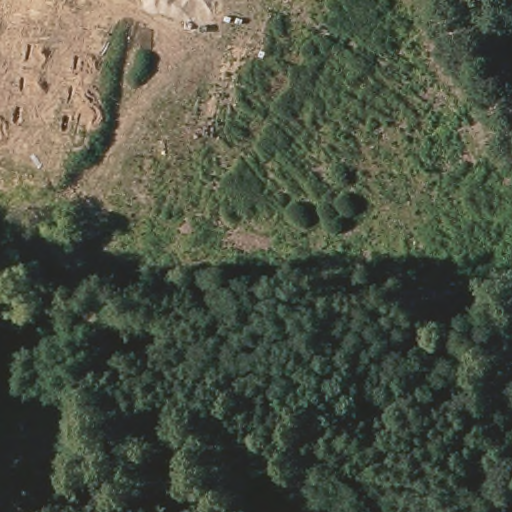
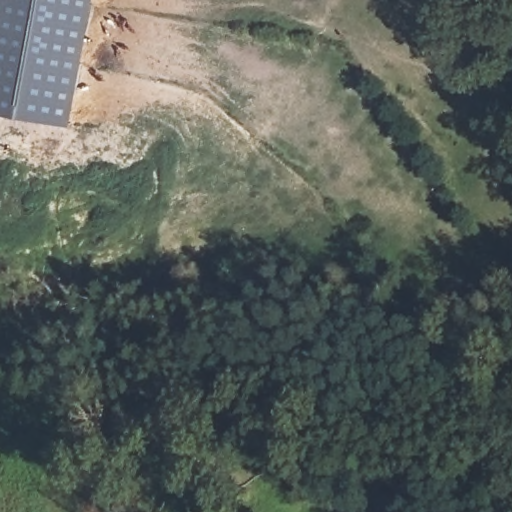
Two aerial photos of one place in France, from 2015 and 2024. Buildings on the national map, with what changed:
new [(73,124),(0,111),(0,0),(95,0),(73,124)]

